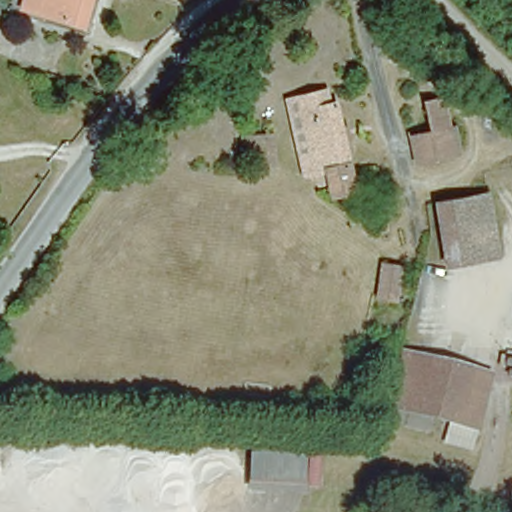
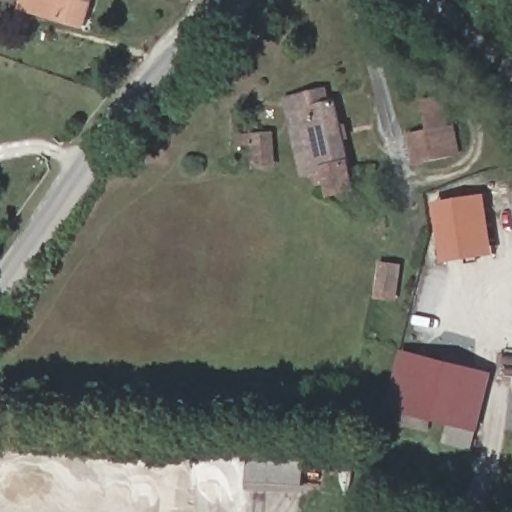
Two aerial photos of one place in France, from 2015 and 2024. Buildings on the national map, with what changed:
unchanged [(24,0),(94,0),(87,22),(22,4),(24,0)]
unchanged [(410,162),(402,130),(425,124),(420,94),(444,90),(453,120),(458,120),(460,148),(410,162)]
unchanged [(328,105),(336,103),(353,177),(318,185),(315,173),(305,175),(288,101),(298,99),(324,93),(328,105)]
unchanged [(254,137),(265,135),(267,149),(256,151),(254,137)]
unchanged [(437,198),(486,190),(497,251),(447,260),(437,198)]
unchanged [(377,259),(397,262),(393,288),(384,287),(382,294),(372,293),(377,259)]
unchanged [(441,434),(444,422),(447,412),(429,408),(425,423),(389,414),(393,399),(388,398),(401,346),(488,366),(475,419),(469,418),(464,439),(441,434)]
unchanged [(250,452),(303,457),(298,494),(245,489),(250,452)]

